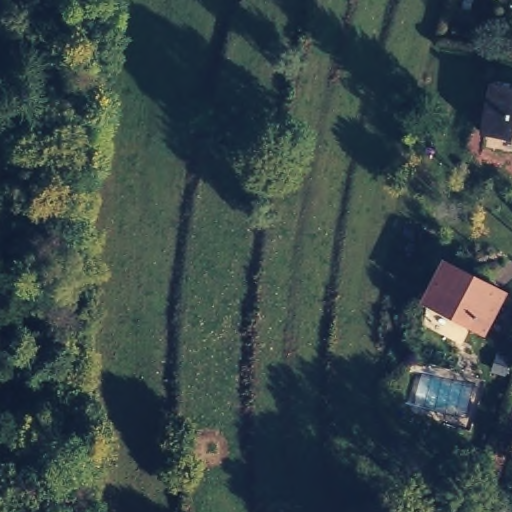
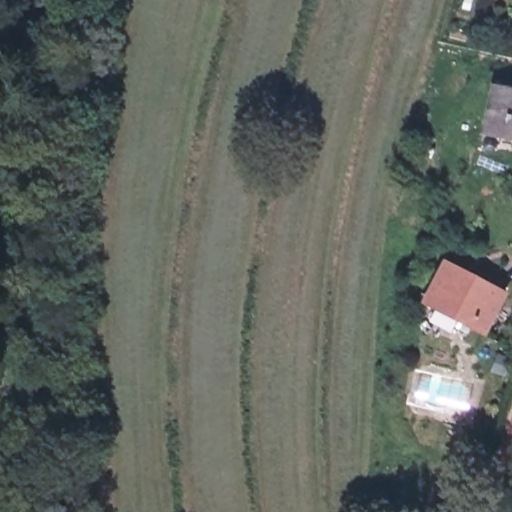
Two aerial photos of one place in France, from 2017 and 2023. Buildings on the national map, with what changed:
unchanged [(487,97),(488,87),(506,91),(512,92),(512,140),(478,134),(487,97)]
unchanged [(488,322),(420,292),(441,252),(508,283),(488,322)]

